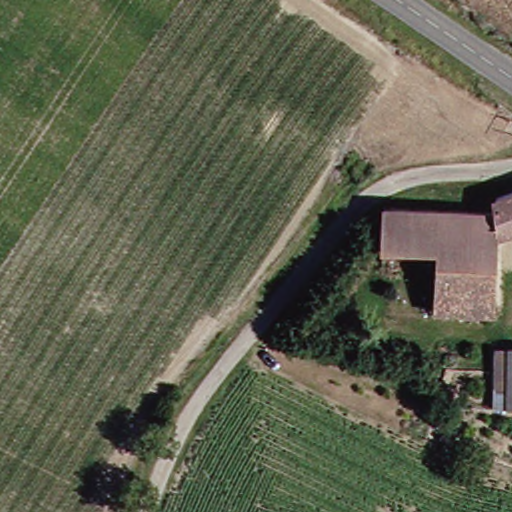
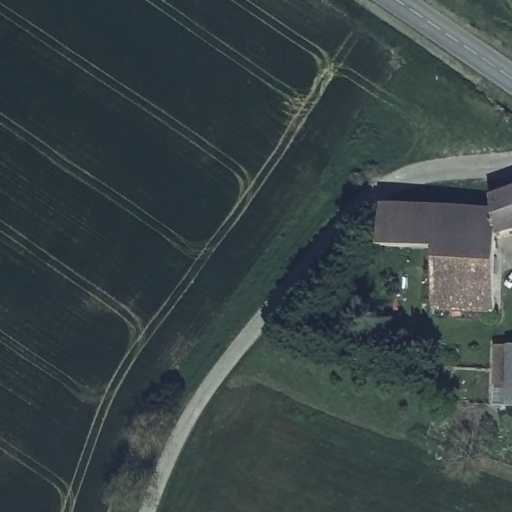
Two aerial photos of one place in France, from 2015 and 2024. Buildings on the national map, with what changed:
unchanged [(382,201),(487,211),(485,198),(512,189),(512,226),(496,224),(489,308),(425,302),(431,248),(376,241),(380,204),(382,201)]
unchanged [(500,407),(500,346),(512,347),(512,407),(500,407)]

